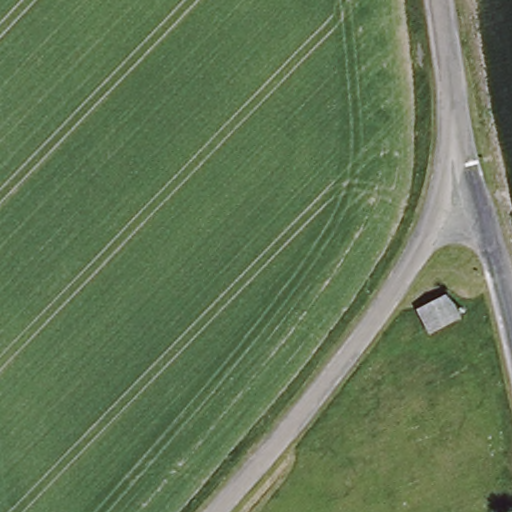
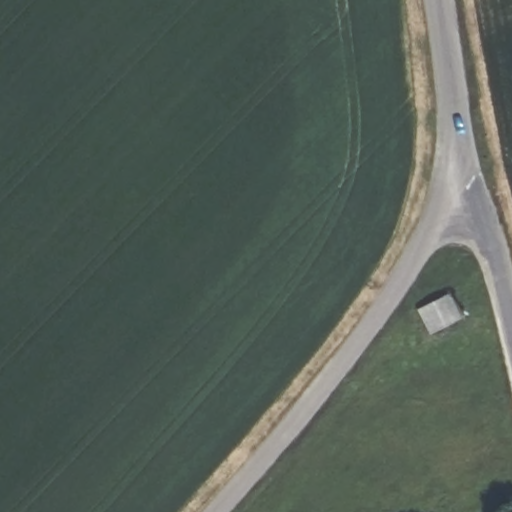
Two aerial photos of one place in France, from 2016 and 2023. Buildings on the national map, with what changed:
unchanged [(434,330),(426,311),(424,307),(431,305),(453,295),(462,319),(434,330)]

